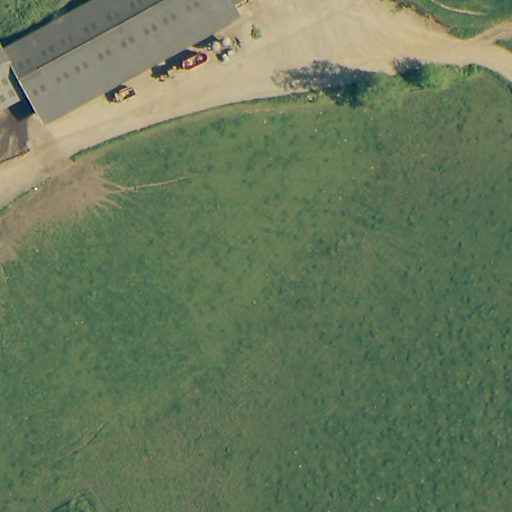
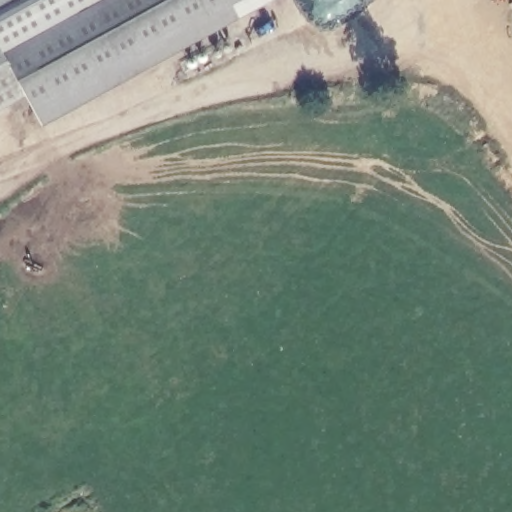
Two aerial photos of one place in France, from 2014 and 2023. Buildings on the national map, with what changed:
new [(0,46),(0,0),(87,0),(0,46)]
unchanged [(226,6),(27,111),(14,88),(0,61),(0,46),(87,0),(237,0),(226,6)]
unchanged [(0,95),(0,61),(14,88),(0,95)]

